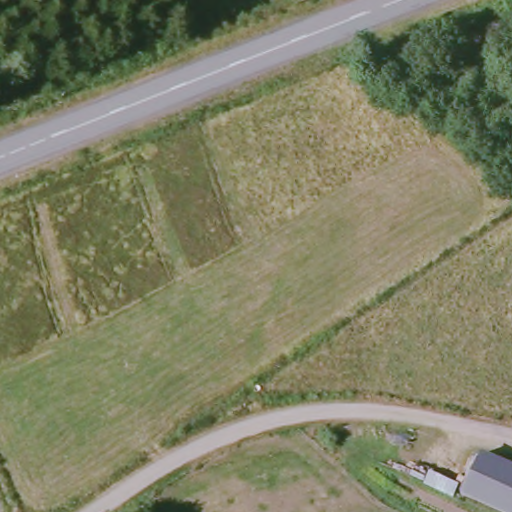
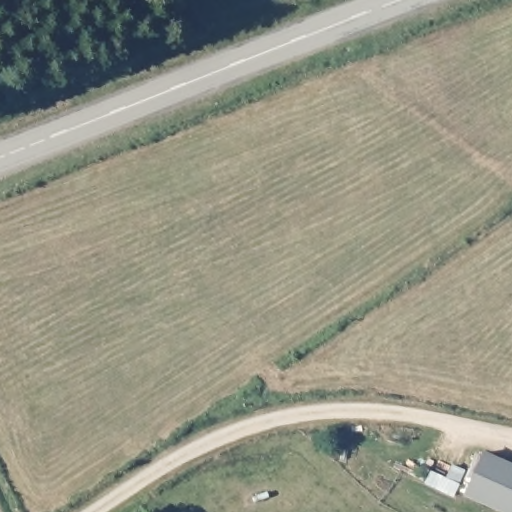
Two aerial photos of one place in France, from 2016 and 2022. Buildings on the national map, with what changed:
unchanged [(492,449),(512,459),(512,510),(472,490),(486,460),(492,449)]

